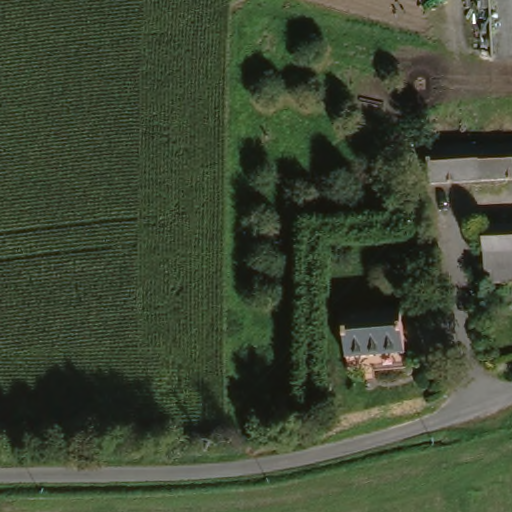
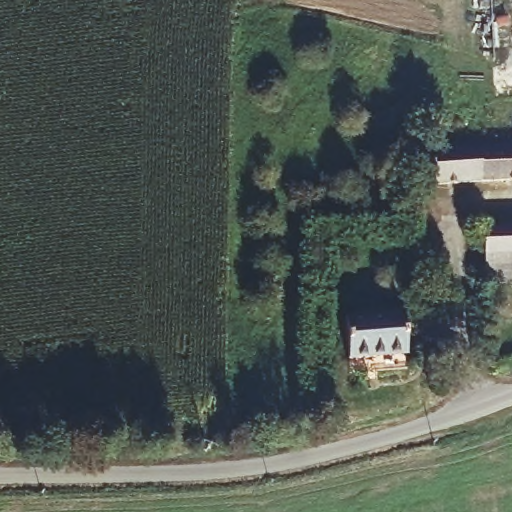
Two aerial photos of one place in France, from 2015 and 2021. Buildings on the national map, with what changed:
unchanged [(480,148),(512,146),(512,179),(432,184),(428,147),(479,143),(480,148)]
unchanged [(512,285),(483,287),(481,231),(512,230),(512,285)]
unchanged [(403,319),(406,359),(347,362),(344,322),(403,319)]

